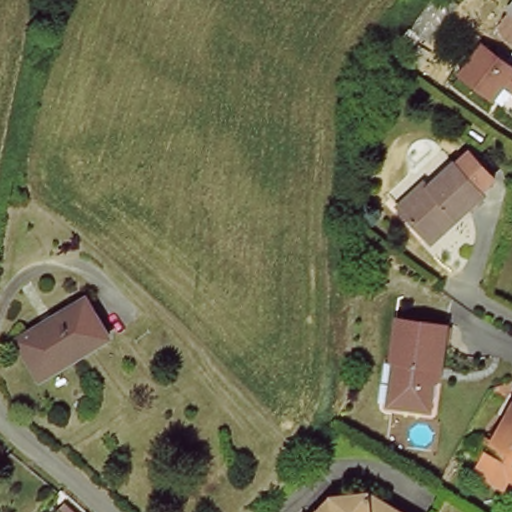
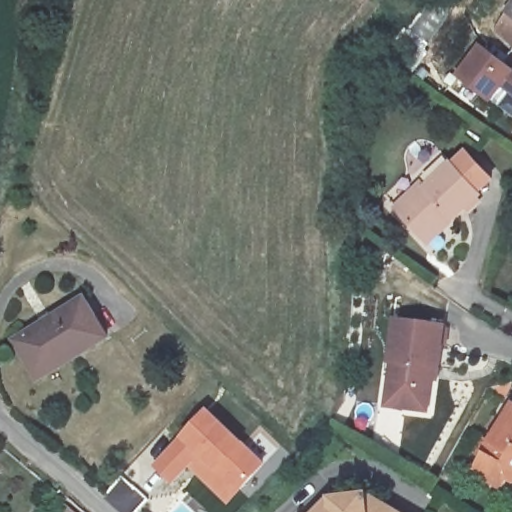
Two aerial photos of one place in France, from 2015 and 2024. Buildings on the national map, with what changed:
unchanged [(498,23),(512,6),(512,35),(498,23)]
unchanged [(454,81),(482,44),(512,68),(512,122),(454,81)]
unchanged [(421,181),(424,184),(452,161),(482,192),(453,219),(450,214),(426,237),(394,204),(421,181)]
unchanged [(23,345),(71,295),(103,326),(46,383),(28,366),(14,352),(23,345)]
unchanged [(449,331),(461,337),(439,375),(417,414),(370,389),(392,349),(395,344),(399,346),(418,313),(449,331)]
unchanged [(482,435),(489,438),(512,397),(512,483),(509,480),(503,489),(470,472),(482,451),(476,447),(482,435)]
new [(209,408),(270,465),(231,505),(191,468),(174,485),(154,467),(209,408)]
unchanged [(326,504),(366,493),(400,512),(320,512),(326,504)]
new [(72,512),(56,512),(63,504),(72,512)]

